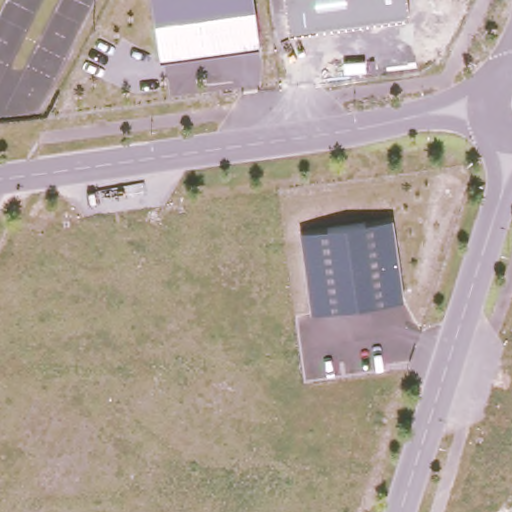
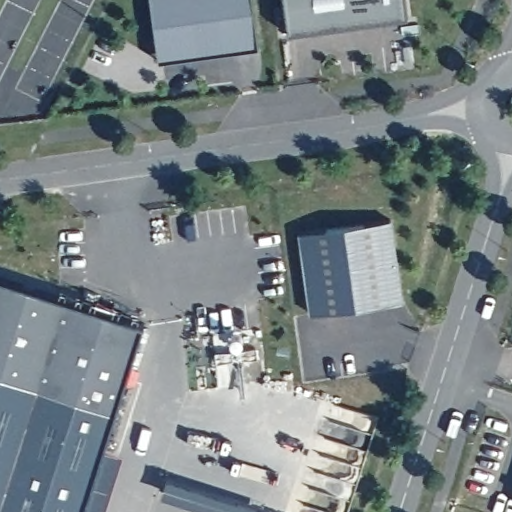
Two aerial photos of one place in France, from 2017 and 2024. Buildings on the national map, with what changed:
unchanged [(159,60),(151,0),(253,0),(260,45),(159,60)]
unchanged [(407,0),(409,15),(287,32),(284,0),(407,0)]
unchanged [(391,217),(404,298),(319,307),(307,229),(391,217)]
new [(108,512),(0,512),(0,325),(15,280),(170,334),(108,512)]
new [(267,509),(266,512),(212,512),(162,496),(167,478),(267,509)]

